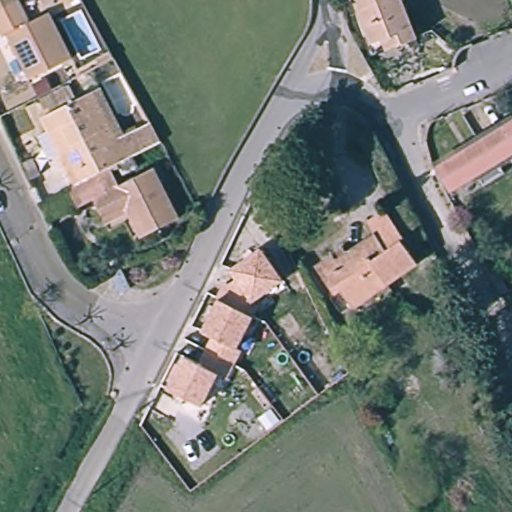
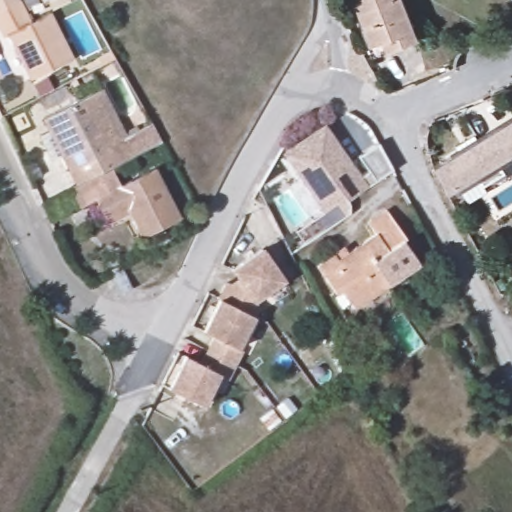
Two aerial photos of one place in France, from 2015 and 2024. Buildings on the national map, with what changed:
unchanged [(16,0),(17,2),(0,11),(0,0),(16,0)]
unchanged [(26,18),(28,24),(47,15),(70,59),(28,80),(6,37),(2,39),(0,36),(0,11),(17,2),(21,0),(34,0),(40,10),(26,18)]
unchanged [(390,50),(386,40),(374,44),(357,0),(402,0),(418,39),(390,50)]
unchanged [(116,165),(85,181),(51,115),(103,88),(129,140),(135,138),(142,151),(116,165)]
unchanged [(478,176),(451,192),(435,164),(512,116),(512,156),(499,164),(505,173),(484,185),(478,176)]
new [(345,201),(343,197),(322,211),(282,152),(324,125),(360,176),(368,171),(359,156),(378,145),(391,171),(376,181),(366,187),(345,201)]
unchanged [(126,182),(161,165),(186,214),(149,234),(137,210),(116,220),(103,195),(88,203),(79,185),(85,181),(116,165),(126,182)]
unchanged [(370,225),(388,212),(407,240),(405,241),(420,264),(356,308),(344,292),(339,295),(319,267),(346,249),(349,254),(378,235),(370,225)]
unchanged [(286,281),(253,302),(259,307),(255,317),(240,349),(228,378),(220,375),(205,406),(168,388),(185,355),(199,361),(212,335),(203,331),(219,298),(226,281),(230,285),(238,279),(231,269),(263,246),(286,281)]
unchanged [(134,290),(122,295),(112,276),(124,270),(134,290)]

